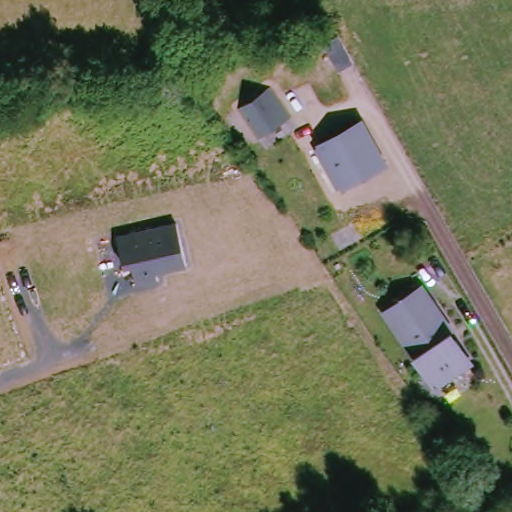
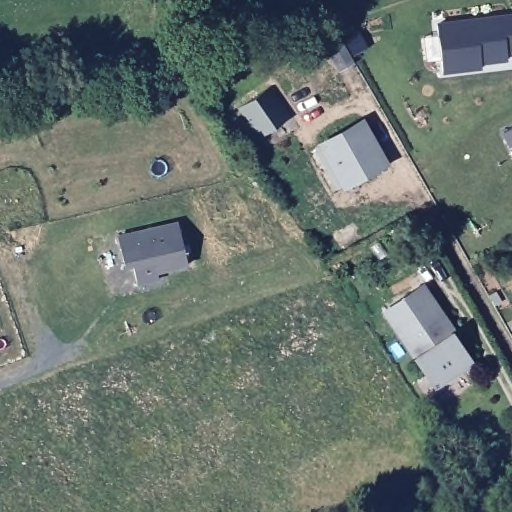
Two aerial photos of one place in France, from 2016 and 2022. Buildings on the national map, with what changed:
new [(512,15),(512,53),(506,53),(507,61),(482,64),(482,69),(444,72),(436,23),(512,15)]
unchanged [(355,64),(342,72),(328,45),(341,38),(355,64)]
unchanged [(293,115),(260,138),(239,108),(272,85),(293,115)]
unchanged [(367,174),(346,187),(322,144),(365,119),(387,157),(390,161),(367,174)]
new [(510,146),(502,133),(512,128),(512,150),(510,146)]
unchanged [(187,265),(155,273),(156,280),(135,285),(130,267),(125,268),(118,234),(177,220),(187,265)]
unchanged [(425,286),(456,332),(450,336),(455,343),(458,340),(474,364),(437,389),(386,312),(425,286)]

